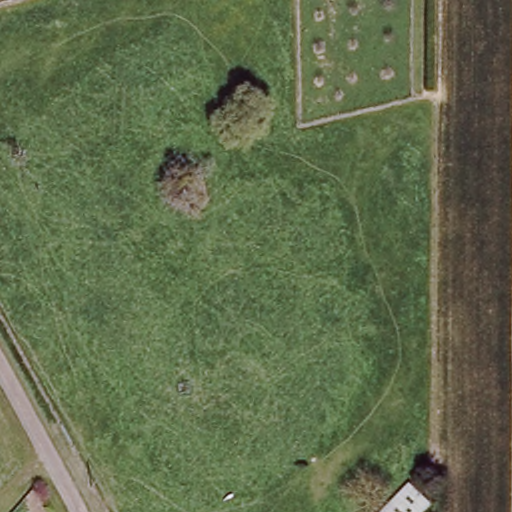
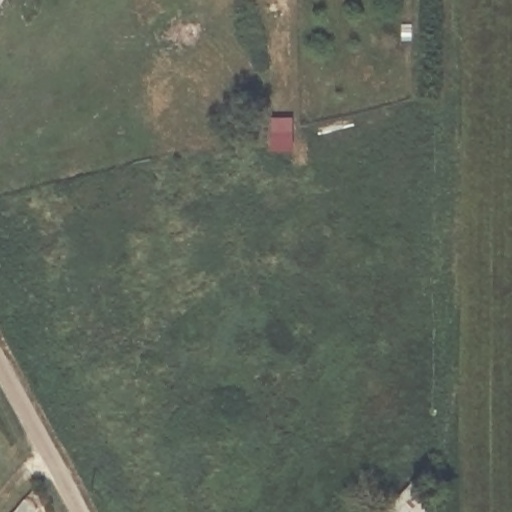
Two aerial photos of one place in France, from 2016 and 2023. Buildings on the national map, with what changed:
unchanged [(438,486),(412,512),(385,512),(425,469),(438,486)]

